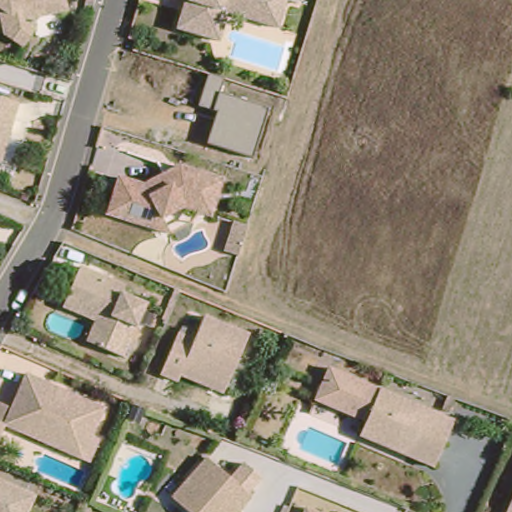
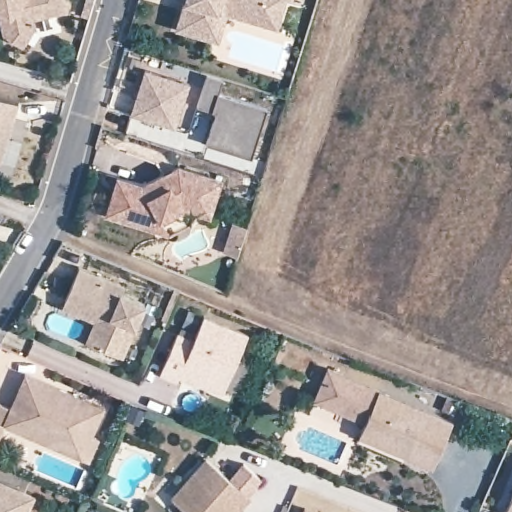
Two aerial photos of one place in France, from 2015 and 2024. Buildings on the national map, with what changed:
unchanged [(64,1),(31,9),(33,18),(22,36),(5,25),(0,7),(0,0),(64,0),(64,1)]
unchanged [(210,29),(176,19),(181,0),(218,0),(210,29)]
unchanged [(277,19),(227,3),(218,32),(210,29),(218,0),(259,0),(264,2),(264,0),(283,0),(277,19)]
unchanged [(264,2),(259,0),(264,0),(264,2)]
new [(147,70),(191,85),(176,130),(133,116),(147,70)]
unchanged [(210,74),(225,79),(221,93),(270,108),(254,159),(208,145),(218,113),(199,107),(210,74)]
unchanged [(0,141),(0,89),(16,95),(0,141)]
unchanged [(139,174),(175,156),(218,169),(206,206),(179,197),(142,215),(103,203),(115,167),(139,174)]
unchanged [(60,303),(74,269),(119,289),(116,296),(141,307),(118,361),(93,350),(82,345),(90,327),(57,312),(60,303)]
unchanged [(179,376),(177,381),(161,373),(179,332),(195,338),(204,316),(248,334),(225,387),(222,394),(179,376)]
unchanged [(303,413),(323,361),(376,387),(355,436),(303,413)]
unchanged [(8,409),(24,374),(100,409),(89,437),(95,440),(85,463),(2,427),(0,430),(0,405),(8,409)]
unchanged [(379,393),(451,425),(431,471),(404,459),(359,438),(362,431),(379,393)]
unchanged [(185,512),(170,500),(204,460),(248,498),(235,512),(185,512)]
unchanged [(30,499),(24,512),(0,512),(0,486),(30,499)]
unchanged [(512,495),(512,512),(506,512),(505,512),(512,495)]

